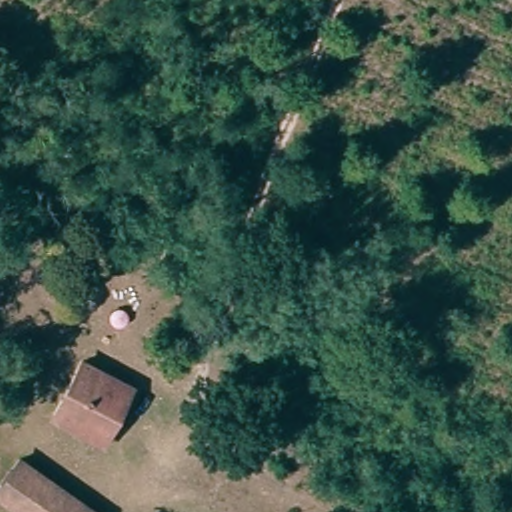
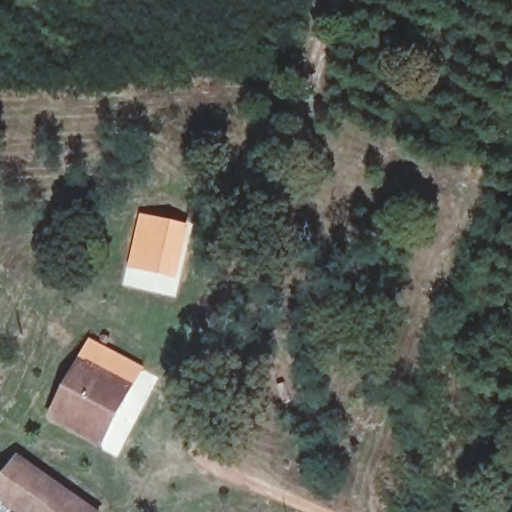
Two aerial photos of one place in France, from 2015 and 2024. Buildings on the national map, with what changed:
new [(140,213),(191,225),(178,279),(126,267),(140,213)]
unchanged [(140,395),(112,446),(57,416),(86,364),(137,392),(140,395)]
unchanged [(0,498),(0,494),(22,460),(100,512),(20,512),(0,498)]

